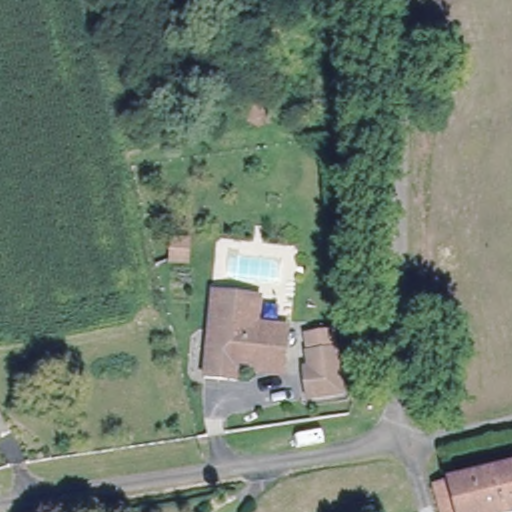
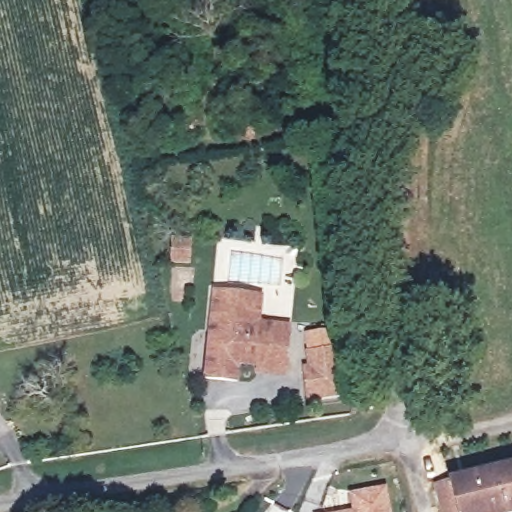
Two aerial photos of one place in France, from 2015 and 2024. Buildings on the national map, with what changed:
unchanged [(188,235),(185,257),(168,255),(170,233),(188,235)]
unchanged [(219,377),(201,375),(210,289),(248,293),(257,294),(255,315),(287,319),(286,328),(282,365),(281,372),(254,369),(255,363),(234,361),(233,379),(219,377)]
unchanged [(334,334),(336,351),(338,351),(343,398),(307,402),(303,370),(308,370),(307,355),(308,355),(306,337),(334,334)]
unchanged [(499,512),(489,470),(512,464),(512,512),(499,512)]
unchanged [(451,479),(489,470),(499,512),(441,512),(435,483),(451,479)]
new [(346,512),(352,511),(349,492),(388,487),(392,512),(346,512)]

